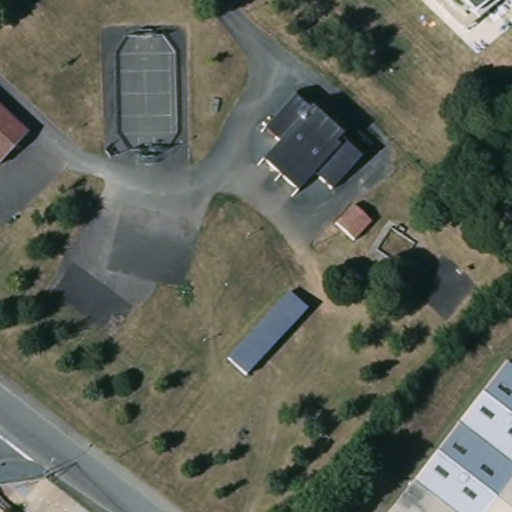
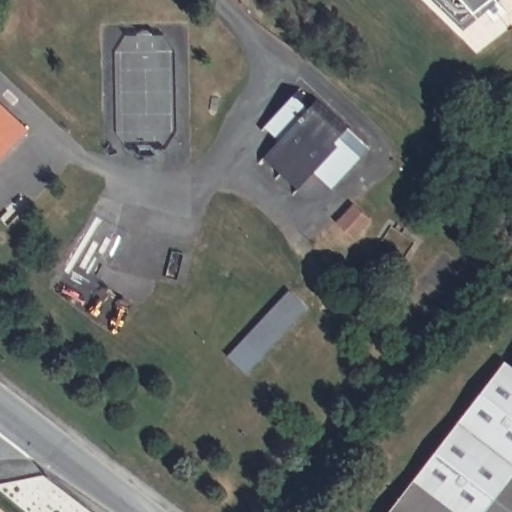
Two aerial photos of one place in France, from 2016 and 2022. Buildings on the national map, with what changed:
unchanged [(485,0),(473,9),(465,0),(485,0)]
unchanged [(320,169),(304,187),(268,154),(284,137),(269,123),(296,95),(310,107),(314,103),(368,151),(337,185),(320,169)]
unchanged [(28,132),(0,163),(0,106),(28,132)]
unchanged [(361,232),(344,252),(326,235),(343,216),(361,232)]
unchanged [(307,310),(246,376),(228,358),(288,293),(307,310)]
unchanged [(412,478),(503,362),(512,369),(512,512),(386,512),(412,478)]

